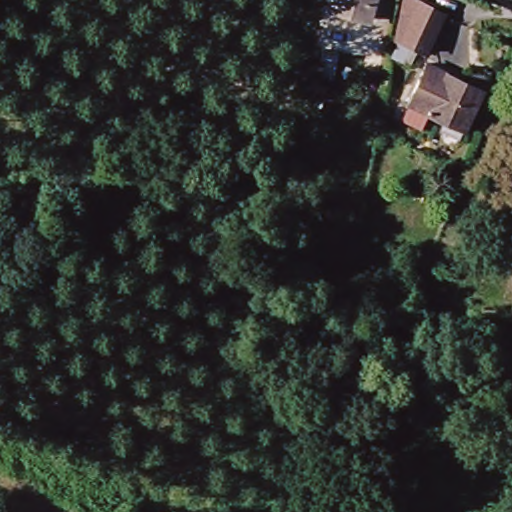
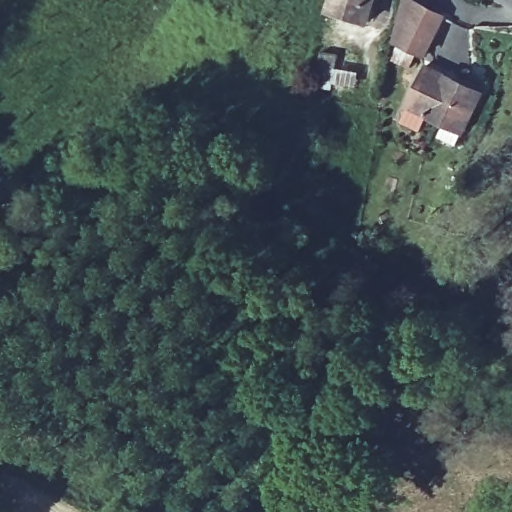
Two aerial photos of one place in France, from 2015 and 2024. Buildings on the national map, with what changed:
unchanged [(338,0),(379,0),(371,24),(334,12),(338,0)]
unchanged [(406,40),(417,1),(448,14),(433,50),(406,40)]
unchanged [(317,61),(322,35),(337,38),(332,64),(317,61)]
unchanged [(427,67),(489,96),(473,131),(411,102),(427,67)]

